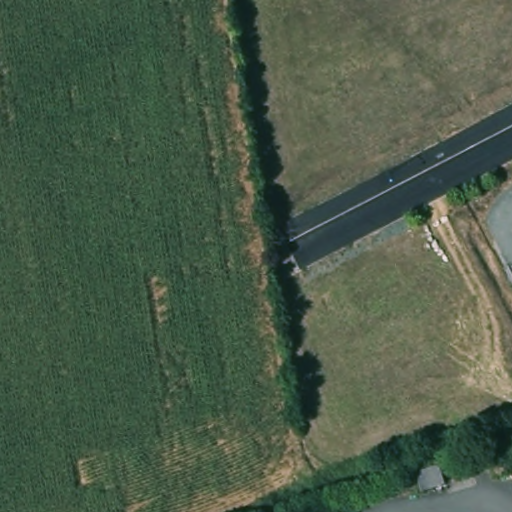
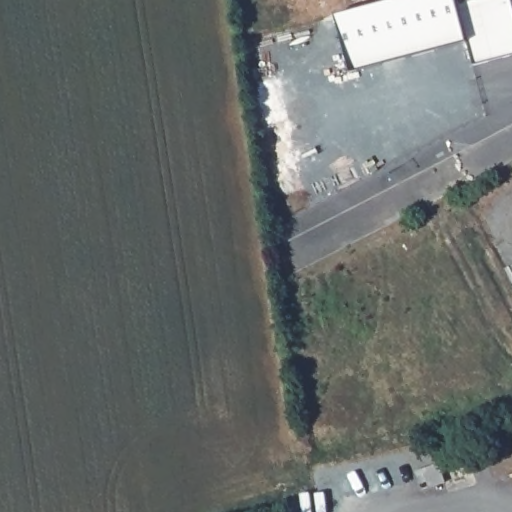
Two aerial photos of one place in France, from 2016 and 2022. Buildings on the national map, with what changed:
new [(465,40),(350,72),(335,15),(390,0),(455,0),(456,5),(473,0),(511,0),(512,5),(512,54),(472,65),(465,40)]
unchanged [(418,497),(409,470),(441,461),(446,484),(418,497)]

